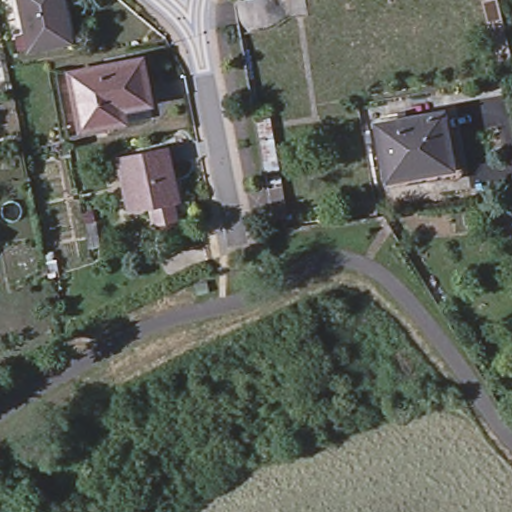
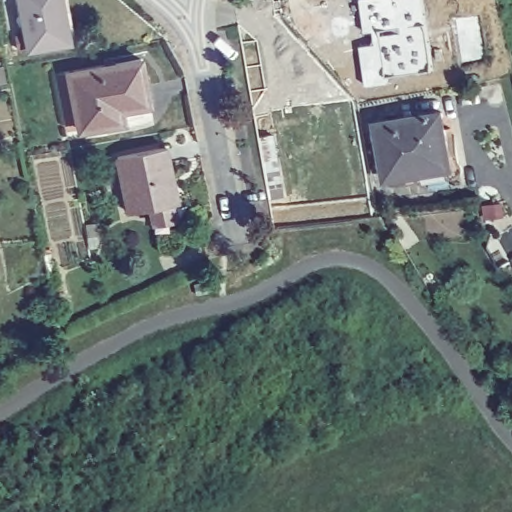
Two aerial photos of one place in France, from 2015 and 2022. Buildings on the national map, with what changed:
unchanged [(28,52),(19,0),(60,0),(69,45),(28,52)]
new [(422,0),(432,69),(387,76),(388,84),(365,87),(360,51),(373,47),(371,32),(363,32),(360,1),(364,0),(422,0)]
unchanged [(70,75),(141,62),(150,109),(121,114),(123,125),(80,132),(70,75)]
unchanged [(455,169),(455,172),(455,174),(453,176),(452,177),(450,177),(447,178),(445,177),(443,176),(442,175),(441,172),(382,179),(382,172),(376,122),(441,114),(444,139),(451,138),(455,169)]
unchanged [(291,219),(273,222),(256,119),(271,117),(291,219)]
unchanged [(116,160),(166,150),(176,206),(126,215),(116,160)]
unchanged [(206,228),(213,227),(215,236),(207,237),(206,228)]

